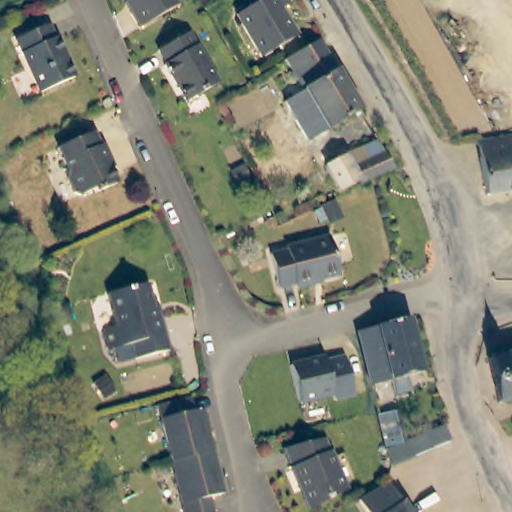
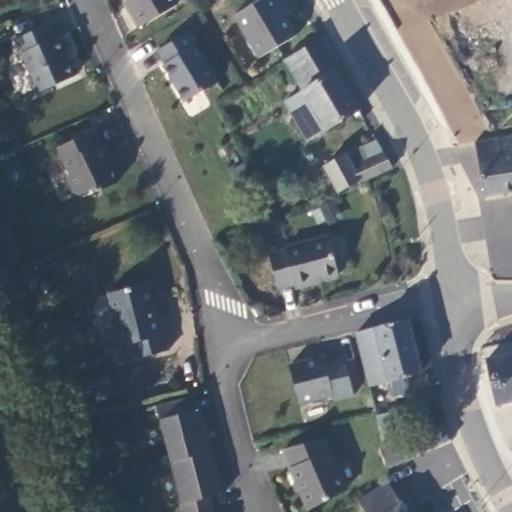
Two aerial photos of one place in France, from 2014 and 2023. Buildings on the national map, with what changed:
unchanged [(129,9),(132,7),(127,0),(173,0),(174,2),(139,25),(129,9)]
unchanged [(239,7),(251,0),(276,0),(279,6),(275,8),(291,37),(263,54),(239,7)]
unchanged [(15,41),(51,26),(74,75),(39,90),(15,41)]
unchanged [(185,100),(156,51),(188,31),(216,80),(208,86),(185,100)]
unchanged [(298,124),(284,98),(301,88),(283,56),(315,36),(358,110),(324,129),(307,139),(298,124)]
unchanged [(72,194),(66,180),(70,177),(59,149),(95,132),(100,142),(104,141),(111,160),(108,161),(117,182),(81,195),(72,194)]
unchanged [(481,157),(481,141),(512,139),(512,192),(480,198),(481,157)]
unchanged [(325,170),(342,160),(351,172),(392,150),(401,164),(392,169),(367,184),(340,199),(325,170)]
unchanged [(311,286),(295,288),(294,282),(276,285),(270,254),(287,250),(286,244),(328,237),(335,276),(311,280),(311,286)]
unchanged [(120,358),(116,347),(110,348),(104,328),(113,326),(110,311),(107,295),(150,283),(153,291),(171,344),(120,358)]
unchanged [(419,372),(391,381),(398,410),(376,417),(375,413),(355,331),(408,320),(419,372)]
unchanged [(288,365),(323,357),(329,396),(295,404),(288,365)]
unchanged [(490,362),(512,357),(512,406),(501,409),(490,362)]
unchanged [(190,395),(198,411),(205,409),(221,492),(210,497),(215,512),(182,512),(159,402),(190,395)]
unchanged [(420,433),(426,446),(396,458),(392,445),(420,433)]
unchanged [(283,448),(324,438),(345,487),(307,503),(283,448)]
unchanged [(360,512),(352,498),(377,484),(389,487),(404,512),(360,512)]

